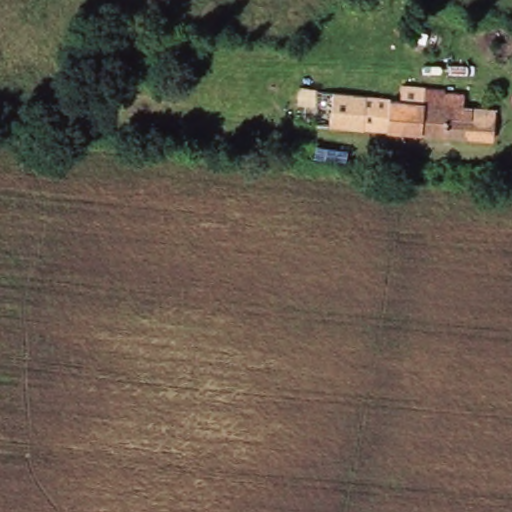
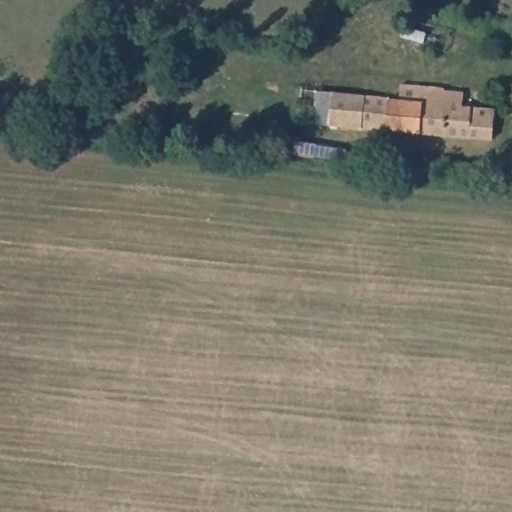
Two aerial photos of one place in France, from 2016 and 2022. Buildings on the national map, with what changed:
unchanged [(490,131),(488,131),(488,139),(324,125),(328,93),(384,99),(384,100),(395,101),(396,85),(440,89),(439,91),(459,93),(458,106),(491,109),(490,131)]
unchanged [(309,158),(289,154),(292,141),(312,145),(309,158)]

